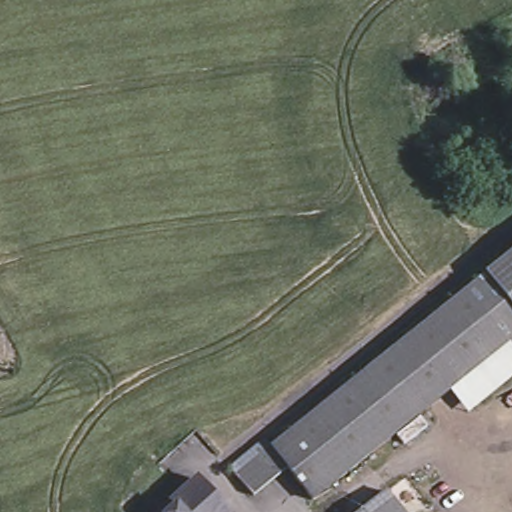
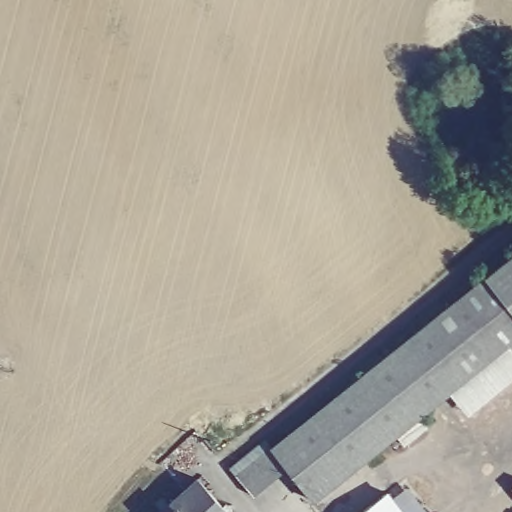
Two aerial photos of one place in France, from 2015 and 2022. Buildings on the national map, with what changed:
unchanged [(487,278),(512,258),(512,352),(508,347),(482,368),(432,408),(311,503),(287,471),(271,451),(275,447),(487,278)]
unchanged [(287,471),(250,500),(235,479),(271,451),(287,471)]
unchanged [(228,512),(169,512),(177,504),(200,482),(228,512)]
unchanged [(386,495),(400,512),(364,512),(386,495)]

